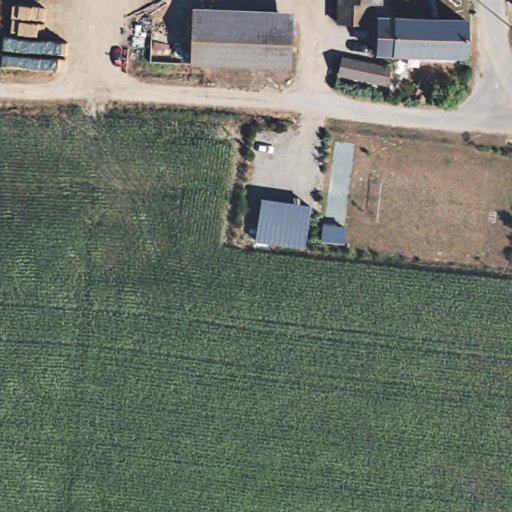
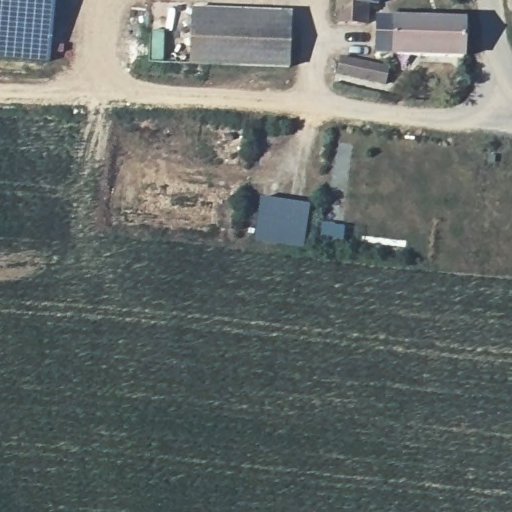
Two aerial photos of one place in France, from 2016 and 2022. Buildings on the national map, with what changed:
new [(49,62),(0,58),(0,0),(55,0),(49,62)]
unchanged [(376,1),(360,0),(376,0),(376,1)]
unchanged [(470,18),(467,57),(382,53),(384,16),(470,18)]
unchanged [(292,21),(289,66),(245,64),(190,62),(190,53),(192,17),(217,18),(292,21)]
unchanged [(392,70),(387,86),(335,74),(339,57),(392,70)]
unchanged [(308,204),(302,252),(253,242),(262,201),(308,204)]

